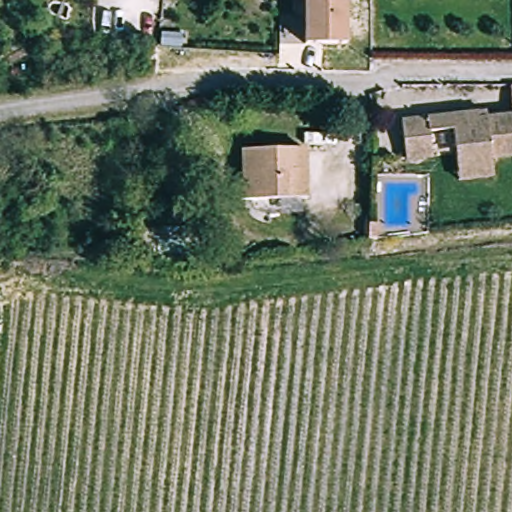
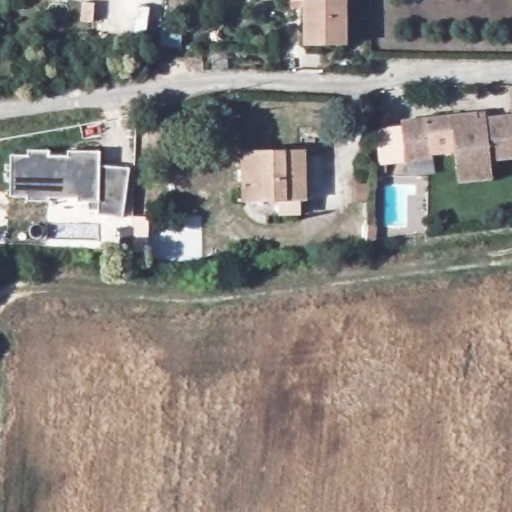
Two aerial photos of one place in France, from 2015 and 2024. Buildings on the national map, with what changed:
unchanged [(308,42),(307,0),(346,0),(347,41),(308,42)]
unchanged [(403,161),(401,137),(400,123),(485,114),(486,120),(512,118),(512,137),(455,137),(431,137),(431,159),(403,161)]
unchanged [(490,160),(490,179),(459,179),(455,137),(512,137),(512,158),(490,160)]
unchanged [(275,187),(236,188),(235,147),(308,147),(309,189),(301,189),(301,205),(276,205),(275,187)]
new [(8,155),(25,155),(25,150),(47,150),(47,155),(65,155),(65,150),(98,150),(97,164),(127,164),(122,212),(96,214),(96,200),(75,201),(75,197),(47,199),(47,201),(25,201),(25,197),(8,197),(8,155)]

